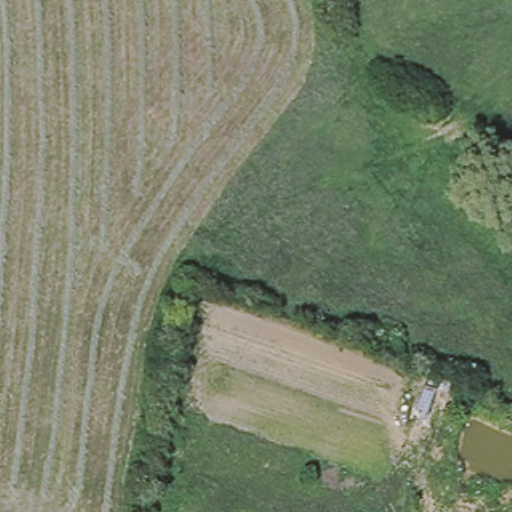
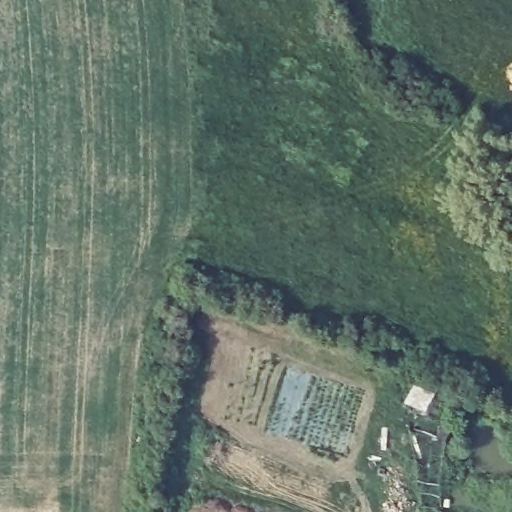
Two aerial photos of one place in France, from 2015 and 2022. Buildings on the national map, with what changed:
[]

